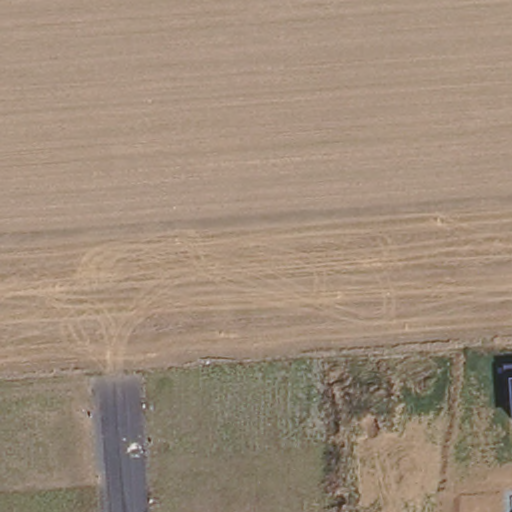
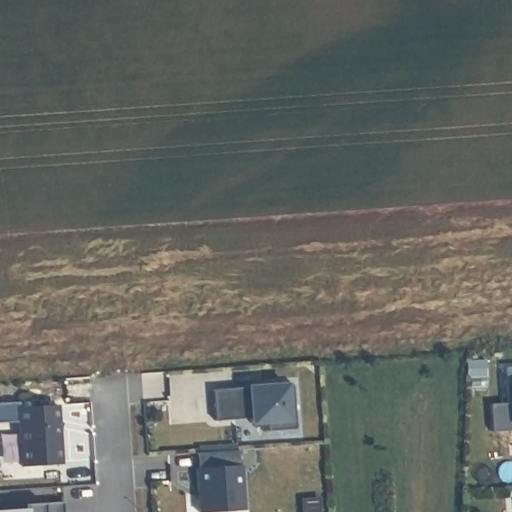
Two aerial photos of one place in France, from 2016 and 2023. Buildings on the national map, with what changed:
unchanged [(512,368),(512,406),(503,407),(500,369),(512,368)]
new [(287,389),(291,434),(263,437),(262,428),(246,429),(246,424),(211,427),(209,396),(287,389)]
new [(17,469),(15,425),(0,426),(0,406),(14,405),(14,410),(51,408),(56,467),(17,469)]
new [(195,456),(194,450),(230,447),(230,453),(195,456)]
new [(232,467),(234,467),(237,512),(195,512),(192,470),(194,470),(192,456),(231,453),(232,467)]
new [(0,508),(59,504),(59,512),(0,512),(0,508)]

